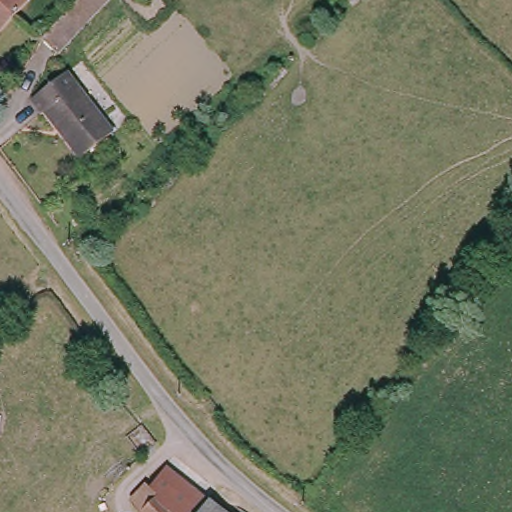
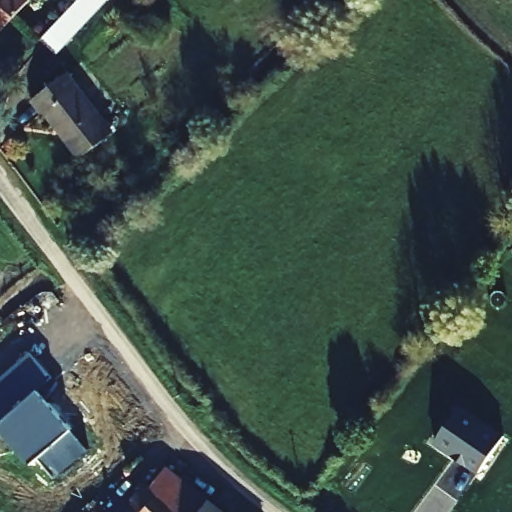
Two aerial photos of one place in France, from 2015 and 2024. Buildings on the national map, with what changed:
unchanged [(0,30),(0,0),(27,0),(28,1),(0,30)]
unchanged [(45,33),(69,7),(76,0),(110,0),(62,49),(45,33)]
unchanged [(41,117),(30,103),(67,76),(114,135),(84,160),(46,113),(41,117)]
new [(54,376),(39,389),(71,428),(87,448),(55,476),(40,456),(30,464),(0,431),(0,386),(2,384),(0,381),(0,379),(32,350),(54,376)]
new [(505,434),(477,473),(435,443),(460,405),(505,434)]
unchanged [(134,500),(148,483),(152,487),(169,466),(212,501),(202,512),(141,512),(134,500)]
unchanged [(212,501),(225,512),(202,512),(212,501)]

